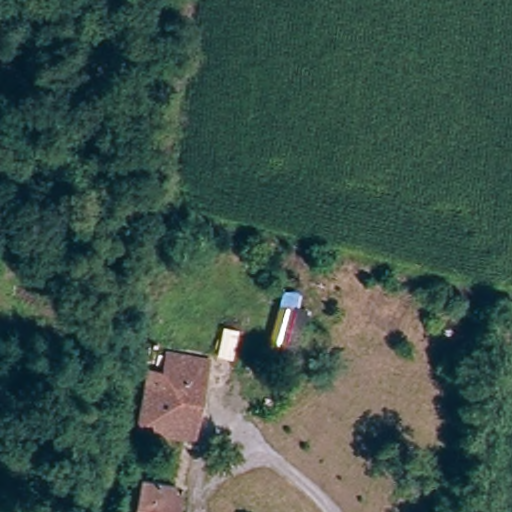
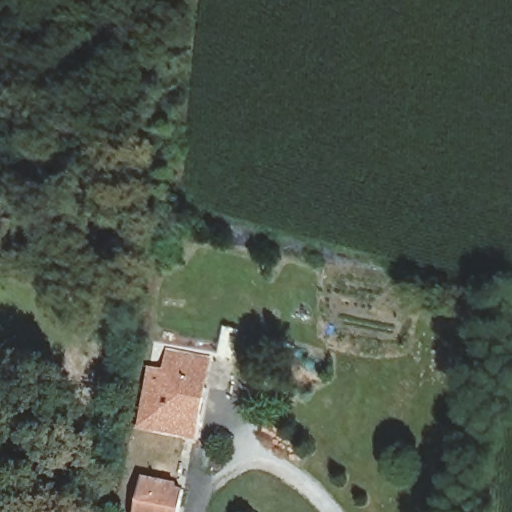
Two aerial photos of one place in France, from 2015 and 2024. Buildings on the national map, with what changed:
unchanged [(144,391),(148,369),(165,374),(169,353),(207,359),(193,437),(154,429),(157,406),(141,403),(144,391)]
unchanged [(173,512),(133,512),(140,478),(178,487),(173,512)]

